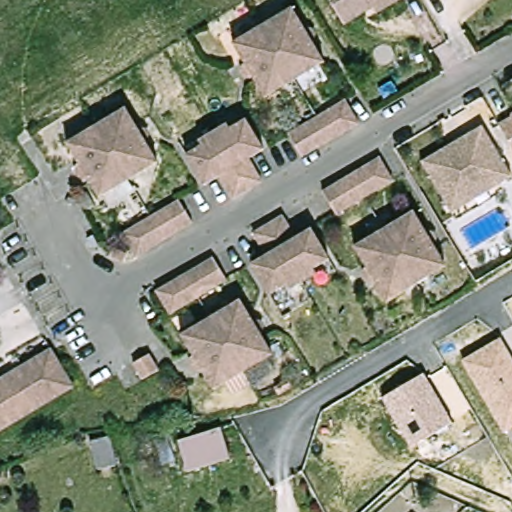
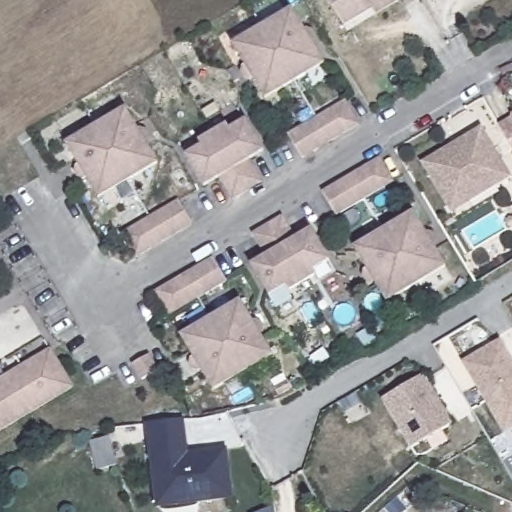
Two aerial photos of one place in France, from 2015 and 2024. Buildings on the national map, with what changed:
unchanged [(344,24),(329,0),(391,0),(375,10),(373,6),(344,24)]
unchanged [(290,6),(324,61),(264,97),(231,41),(290,6)]
unchanged [(343,101),(357,124),(300,159),(286,136),(343,101)]
unchanged [(121,106),(155,162),(97,197),(62,142),(121,106)]
unchanged [(497,123),(511,114),(510,112),(512,111),(512,148),(507,139),(497,123)]
unchanged [(216,174),(201,184),(182,152),(197,142),(194,137),(222,120),(225,125),(241,116),(260,147),(245,157),(259,180),(231,197),(216,174)]
unchanged [(446,207),(420,164),(481,127),(512,178),(493,190),(451,215),(446,207)]
unchanged [(378,158),(392,181),(335,217),(321,194),(378,158)]
unchanged [(120,239),(177,204),(191,227),(134,262),(120,239)]
unchanged [(412,212),(445,267),(386,304),(353,249),(412,212)]
unchanged [(261,254),(246,231),(275,214),(289,237),(305,227),(324,258),(308,268),(312,273),(283,291),(280,286),(265,295),(245,263),(261,254)]
unchanged [(210,256),(221,275),(163,310),(152,291),(156,288),(210,256)]
unchanged [(235,300),(268,355),(210,391),(176,336),(235,300)]
unchanged [(506,434),(463,362),(501,340),(512,357),(512,430),(506,434)]
unchanged [(48,342),(72,381),(0,426),(0,372),(48,342)]
unchanged [(159,377),(152,381),(143,387),(133,370),(142,365),(149,360),(159,377)]
unchanged [(413,446),(382,398),(425,375),(451,423),(413,446)]
new [(185,419),(189,452),(230,450),(235,499),(156,509),(145,423),(185,419)]
demolished [(235,460),(192,475),(182,442),(225,428),(235,460)]
unchanged [(117,465),(95,470),(88,441),(110,436),(117,465)]
new [(273,505),(274,512),(256,512),(273,505)]

